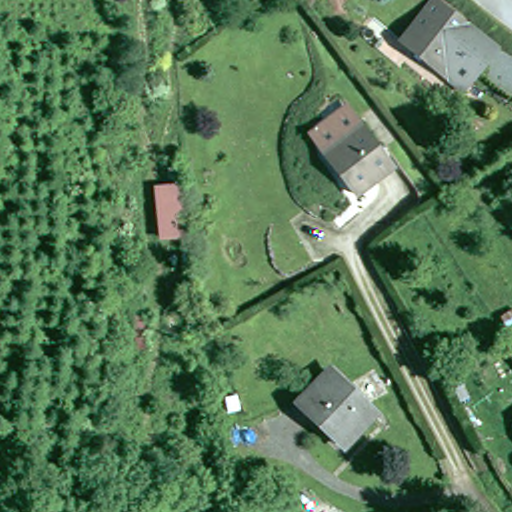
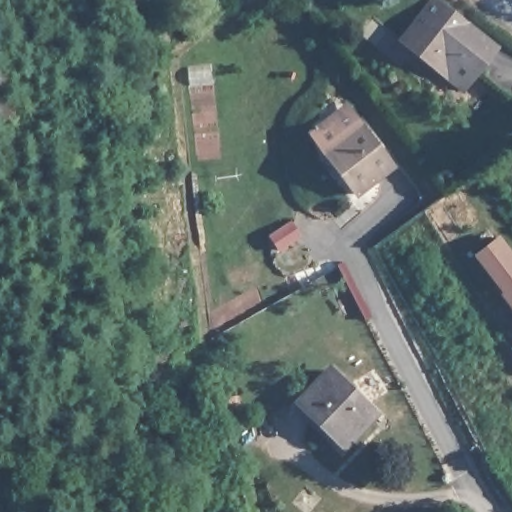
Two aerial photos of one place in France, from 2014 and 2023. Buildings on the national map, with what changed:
unchanged [(427,0),(442,0),(503,46),(463,92),(397,39),(427,0)]
unchanged [(307,130),(344,102),(363,131),(329,157),(307,130)]
unchanged [(363,131),(394,172),(356,200),(342,183),(346,180),(329,157),(363,131)]
unchanged [(183,182),(188,237),(161,239),(156,185),(183,182)]
new [(474,253),(499,234),(512,251),(512,307),(474,253)]
demolished [(512,311),(512,316),(502,321),(497,313),(509,307),(512,311)]
unchanged [(348,450),(344,446),(301,405),(332,375),(374,416),(379,420),(348,450)]

